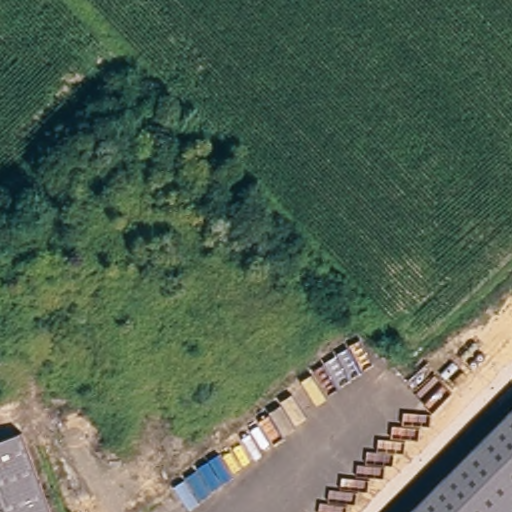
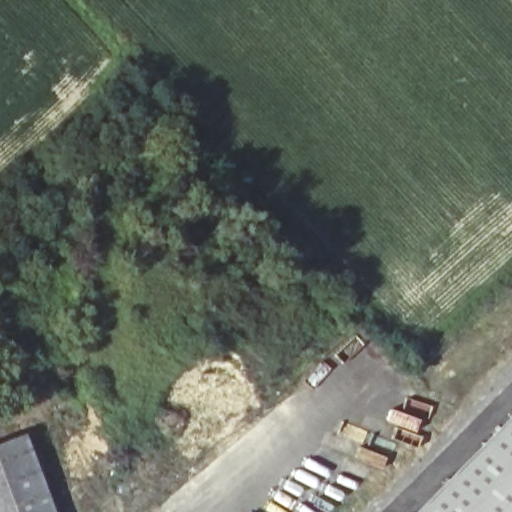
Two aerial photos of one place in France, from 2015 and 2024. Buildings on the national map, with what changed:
unchanged [(411,512),(512,409),(512,512),(411,512)]
unchanged [(51,512),(0,512),(0,440),(21,433),(51,512)]

